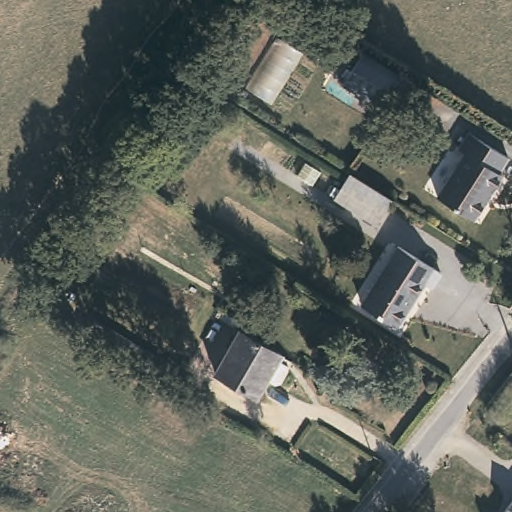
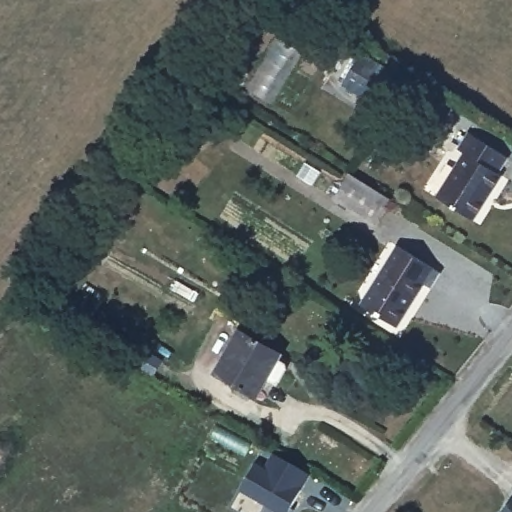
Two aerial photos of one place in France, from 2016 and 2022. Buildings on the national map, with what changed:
unchanged [(356,55),(394,81),(372,112),(335,86),(356,55)]
unchanged [(505,155),(496,168),(500,171),(472,216),(436,193),(464,149),(457,145),(466,132),(505,155)]
unchanged [(396,194),(381,219),(338,192),(353,167),(396,194)]
unchanged [(396,247),(438,273),(430,289),(420,283),(394,327),(359,305),(396,247)]
unchanged [(247,323),(261,330),(256,339),(283,355),(258,398),(215,372),(240,329),(243,331),(247,323)]
unchanged [(161,359),(154,371),(124,353),(131,341),(161,359)]
demolished [(253,512),(229,497),(268,453),(338,506),(334,512),(253,512)]
new [(278,512),(241,491),(257,462),(266,467),(272,454),(308,475),(289,512),(278,512)]
unchanged [(512,512),(503,512),(512,500),(512,512)]

